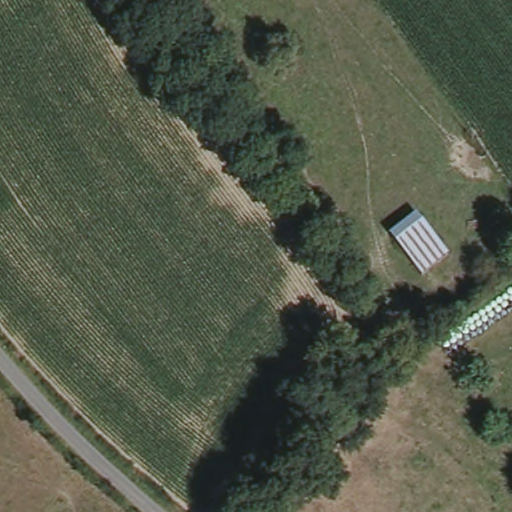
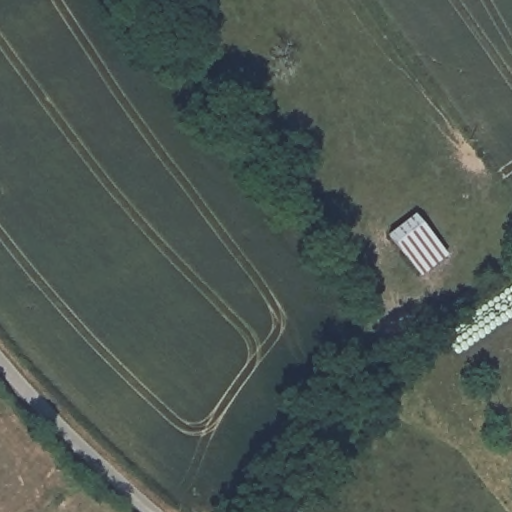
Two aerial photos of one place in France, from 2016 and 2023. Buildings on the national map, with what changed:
unchanged [(411,209),(449,257),(421,277),(386,229),(411,209)]

